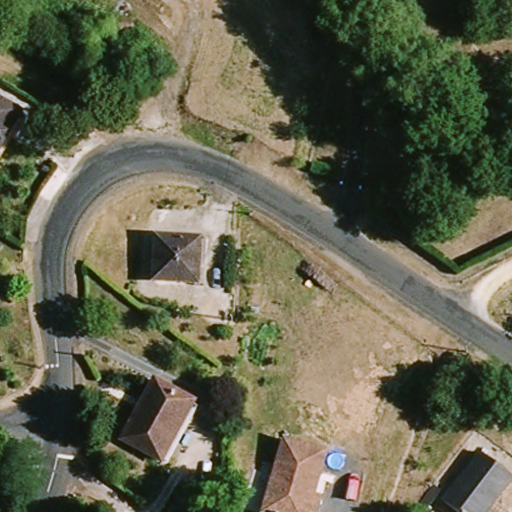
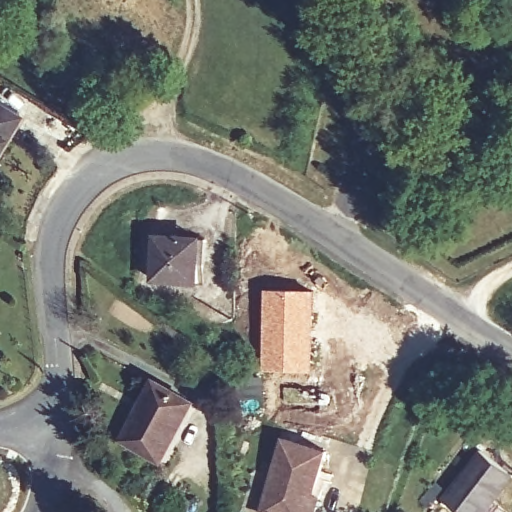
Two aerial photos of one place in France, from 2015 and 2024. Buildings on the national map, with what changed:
unchanged [(24,113),(0,151),(0,98),(24,113)]
unchanged [(155,235),(202,237),(199,283),(152,281),(155,235)]
new [(264,288),(315,289),(312,371),(262,370),(264,288)]
new [(237,399),(236,378),(264,377),(265,398),(237,399)]
unchanged [(122,441),(155,383),(194,405),(162,463),(122,441)]
unchanged [(288,441),(331,453),(319,497),(326,499),(322,512),(268,512),(288,441)]
unchanged [(443,500),(480,453),(512,478),(512,479),(486,512),(459,512),(443,500)]

